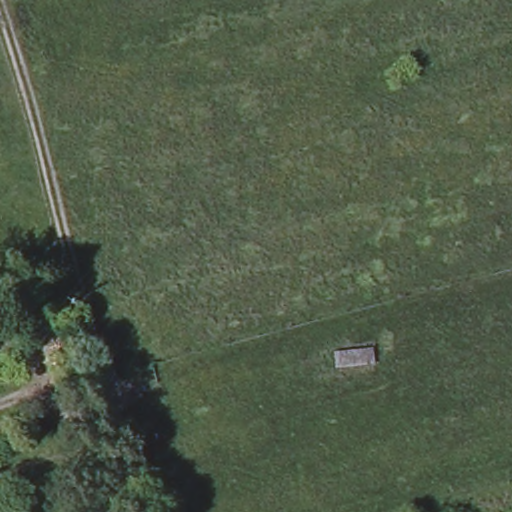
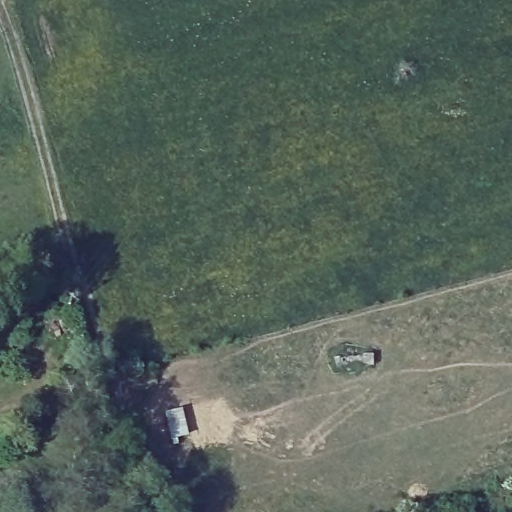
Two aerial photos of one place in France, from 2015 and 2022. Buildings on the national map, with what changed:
unchanged [(377,365),(340,369),(339,350),(372,345),(377,365)]

